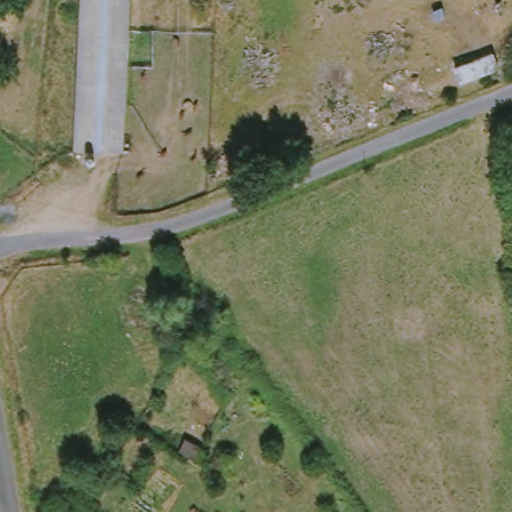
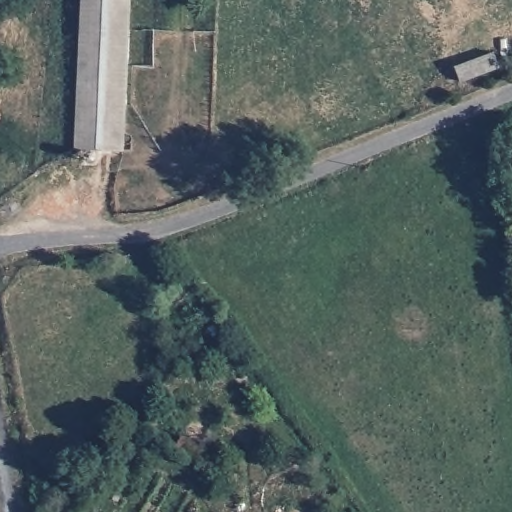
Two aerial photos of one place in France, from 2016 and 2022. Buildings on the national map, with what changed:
unchanged [(72,146),(79,0),(127,0),(118,149),(72,146)]

